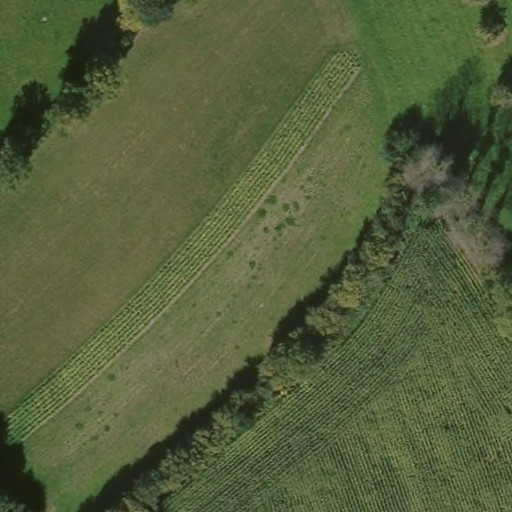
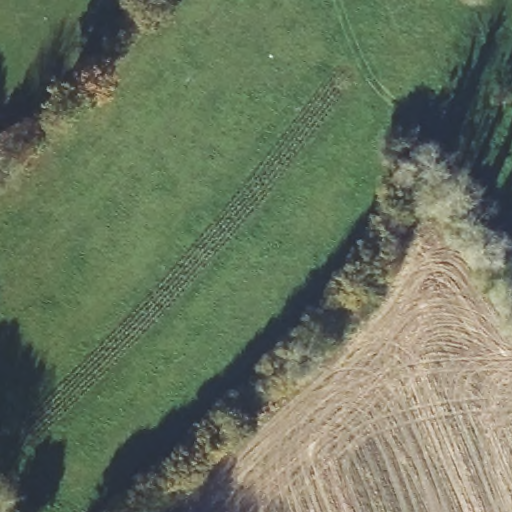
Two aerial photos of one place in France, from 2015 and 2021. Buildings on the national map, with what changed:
[]

